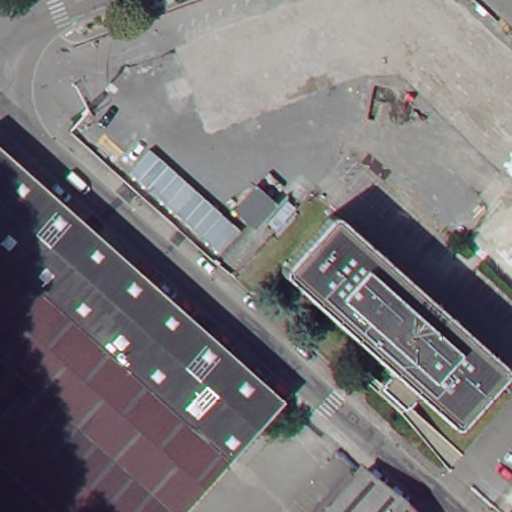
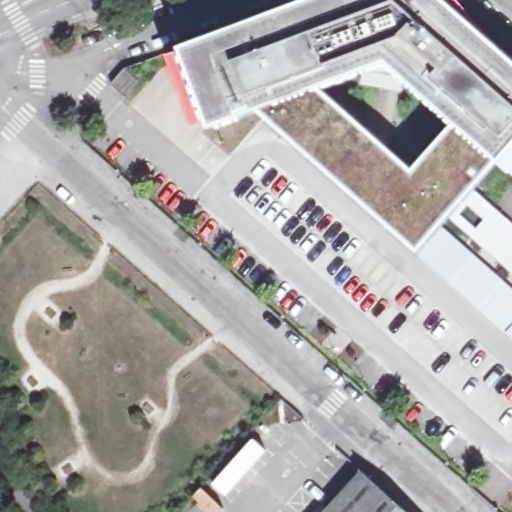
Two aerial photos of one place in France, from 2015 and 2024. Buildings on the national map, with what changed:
new [(500,163),(475,192),(450,220),(443,228),(420,255),(255,112),(210,128),(207,121),(193,127),(167,57),(182,52),(181,48),(310,0),(460,0),(495,44),(512,59),(512,175),(500,163)]
demolished [(370,19),(303,96),(228,29),(307,0),(464,0),(512,43),(512,85),(487,112),(465,93),(461,96),(370,19)]
demolished [(130,67),(279,201),(225,262),(75,128),(130,67)]
demolished [(186,512),(63,512),(0,455),(0,143),(285,398),(186,512)]
new [(475,192),(504,217),(512,225),(512,273),(510,271),(480,245),(450,220),(475,192)]
demolished [(395,367),(286,268),(335,214),(508,367),(459,424),(421,390),(411,401),(385,378),(395,367)]
new [(472,254),(503,282),(512,290),(512,338),(506,333),(477,307),(448,282),(420,255),(443,228),(472,254)]
demolished [(320,487),(340,464),(357,480),(338,504),(320,487)]
unchanged [(407,512),(335,512),(367,476),(407,512)]

